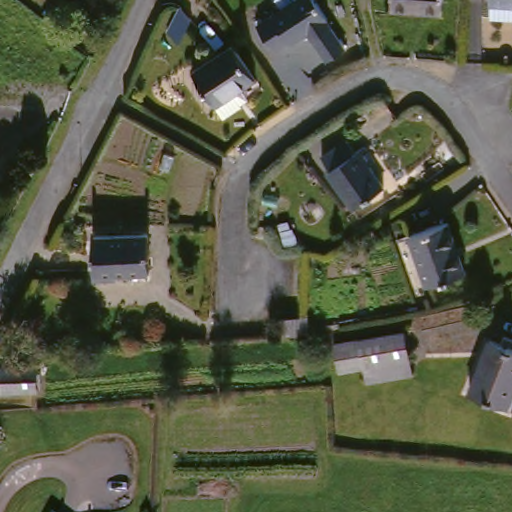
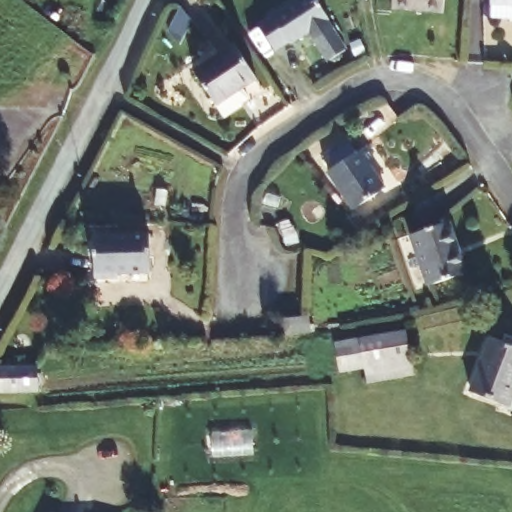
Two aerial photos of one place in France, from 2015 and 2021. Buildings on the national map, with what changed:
unchanged [(184,0),(192,14),(181,40),(172,25),(183,0),(184,0)]
unchanged [(314,0),(324,17),(322,18),(329,29),(312,40),(306,30),(286,42),(285,39),(272,47),(256,20),(289,0),(314,0)]
unchanged [(386,10),(387,0),(439,0),(437,16),(386,10)]
unchanged [(512,0),(512,19),(488,16),(490,0),(512,0)]
unchanged [(239,104),(240,106),(222,117),(214,105),(193,70),(232,46),(254,81),(240,90),(246,100),(239,104)]
unchanged [(326,166),(330,164),(322,150),(347,132),(356,145),(364,140),(374,155),(366,160),(381,185),(351,205),(326,166)]
unchanged [(416,228),(454,217),(467,267),(429,279),(416,228)]
unchanged [(92,232),(148,231),(148,240),(147,270),(115,270),(115,275),(92,273),(92,236),(92,232)]
unchanged [(301,320),(302,330),(277,333),(276,324),(276,321),(301,317),(301,320)]
unchanged [(406,327),(408,337),(415,375),(367,382),(360,345),(359,335),(406,327)]
unchanged [(512,402),(467,383),(488,334),(512,343),(512,402)]
unchanged [(14,358),(37,357),(37,367),(36,375),(35,390),(0,391),(0,359),(14,358)]

